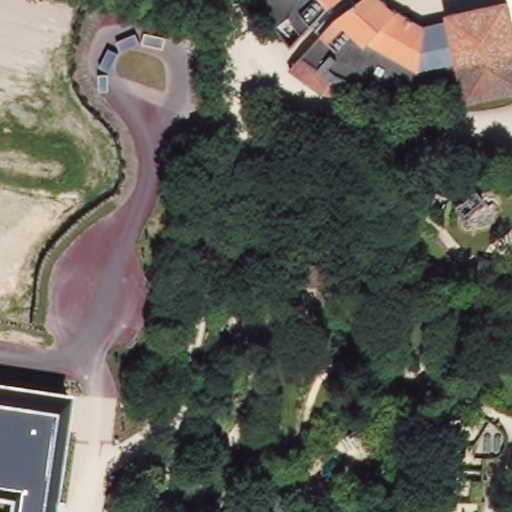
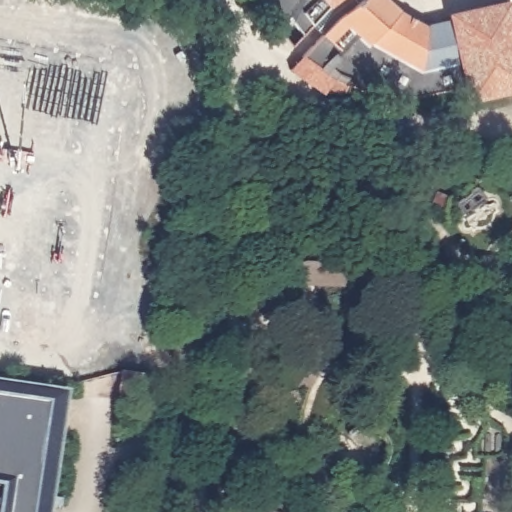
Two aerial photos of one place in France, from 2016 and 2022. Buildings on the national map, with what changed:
unchanged [(459,105),(458,85),(410,96),(381,96),(356,91),(328,80),(297,56),(318,35),(308,25),(298,35),(285,18),(272,28),(259,10),(257,7),(253,0),(350,0),(352,3),(356,0),(384,0),(395,10),(406,16),(405,17),(410,20),(410,19),(421,25),(421,24),(444,19),(443,13),(501,0),(505,0),(512,36),(512,91),(459,105)]
unchanged [(355,170),(355,196),(252,194),(253,165),(355,170)]
unchanged [(0,383),(70,393),(53,512),(0,512),(0,383)]
unchanged [(238,498),(275,512),(233,512),(238,498)]

